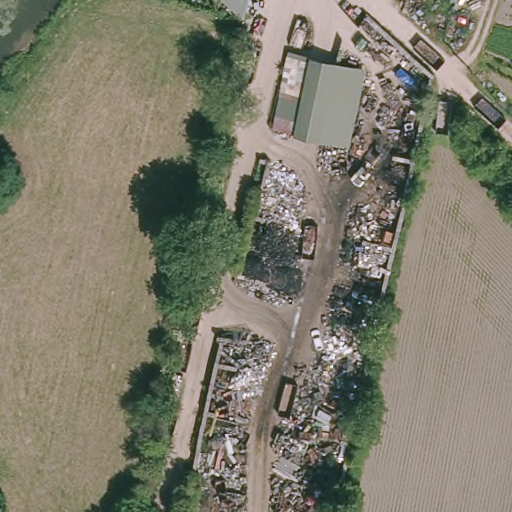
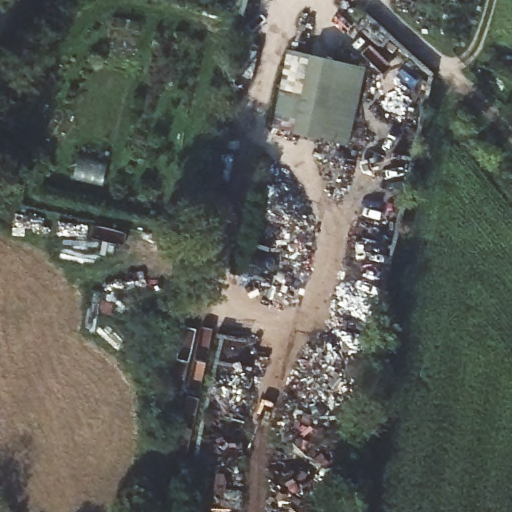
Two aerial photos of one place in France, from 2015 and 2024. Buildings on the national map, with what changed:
unchanged [(227,0),(248,0),(243,15),(227,0)]
unchanged [(356,66),(341,136),(277,117),(292,49),(356,66)]

